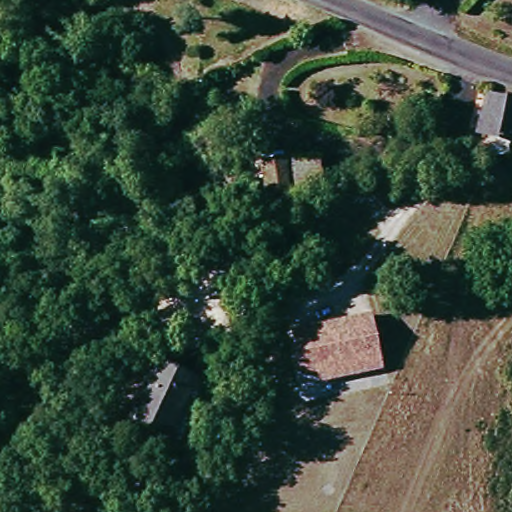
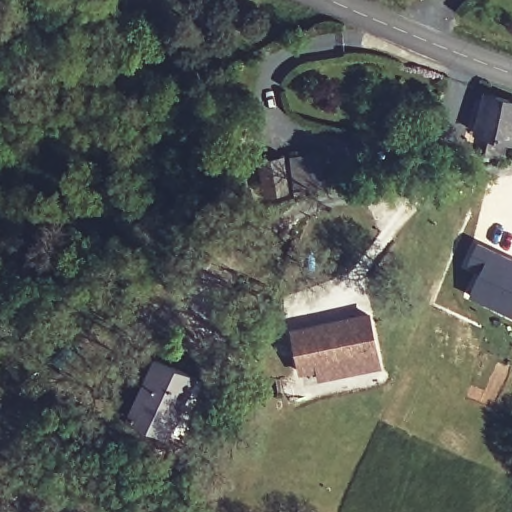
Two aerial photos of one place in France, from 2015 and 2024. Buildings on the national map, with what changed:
unchanged [(471,129),(482,94),(512,104),(512,140),(511,143),(471,129)]
unchanged [(326,152),(324,180),(295,178),(297,150),(326,152)]
new [(512,257),(512,318),(465,297),(476,274),(460,266),(474,239),(512,257)]
unchanged [(380,364),(320,378),(317,368),(297,372),(289,326),(370,310),(380,364)]
unchanged [(147,362),(187,380),(162,435),(122,418),(147,362)]

